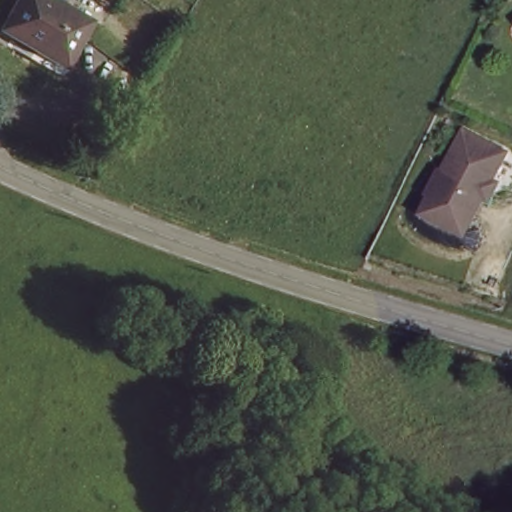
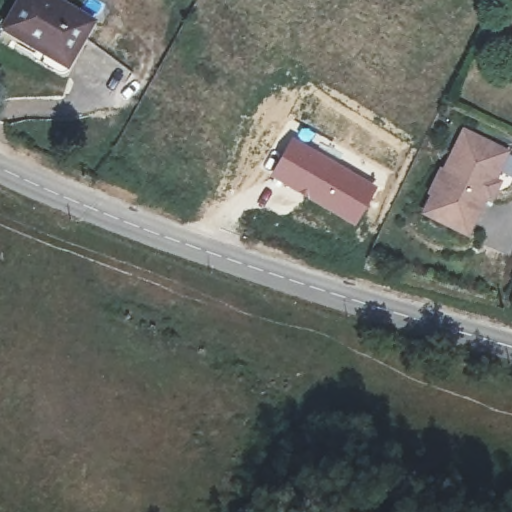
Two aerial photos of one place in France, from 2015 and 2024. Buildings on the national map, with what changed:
unchanged [(17,0),(50,0),(89,22),(65,67),(39,54),(0,33),(0,32),(6,22),(17,0)]
unchanged [(432,198),(465,127),(508,148),(494,176),(500,179),(492,195),(486,192),(474,219),(468,230),(426,210),(432,198)]
new [(292,136),(378,187),(355,227),(269,177),(292,136)]

